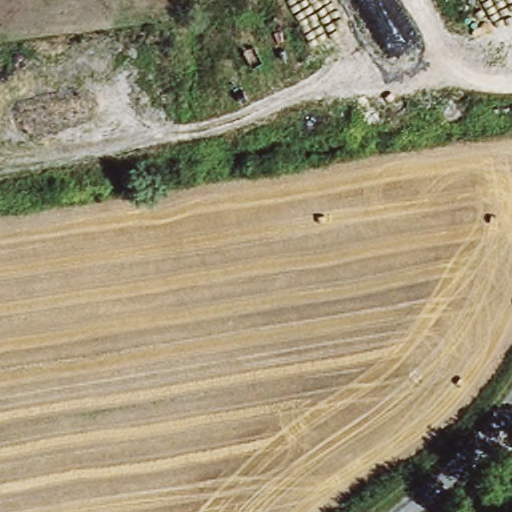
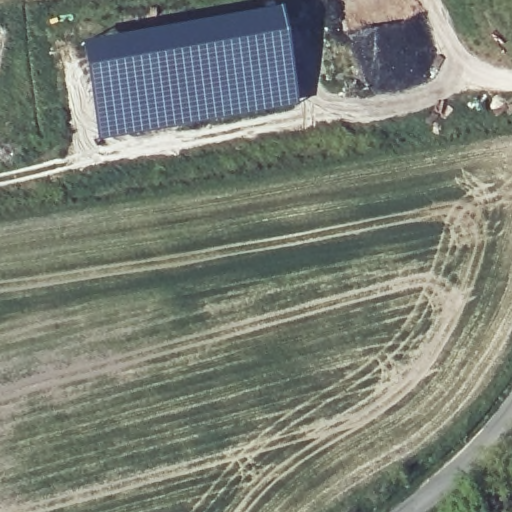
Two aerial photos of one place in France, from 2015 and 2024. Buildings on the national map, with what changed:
new [(281,10),(298,107),(102,143),(85,46),(281,10)]

